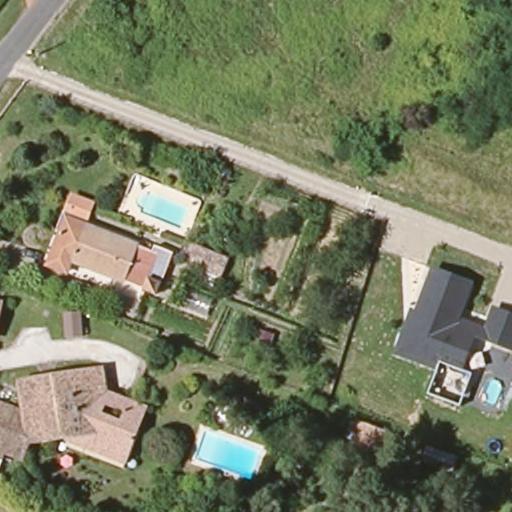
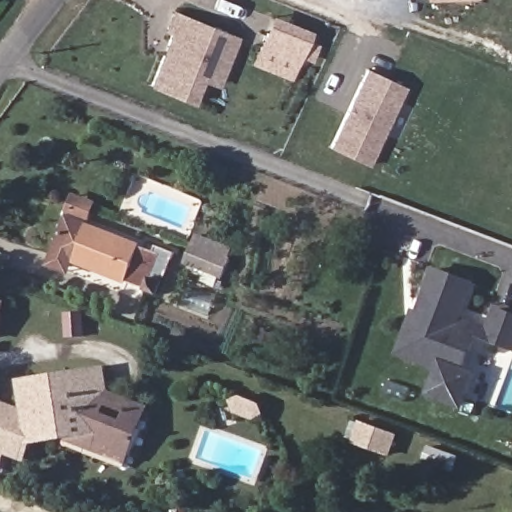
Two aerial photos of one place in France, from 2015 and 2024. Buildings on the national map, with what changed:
new [(175,33),(169,30),(176,13),(238,38),(219,85),(204,78),(194,102),(153,86),(175,33)]
new [(275,18),(312,33),(306,48),(299,64),(262,49),(268,33),(275,18)]
new [(370,70),(408,88),(370,167),(333,150),(370,70)]
unchanged [(52,269),(55,261),(55,259),(66,232),(61,230),(68,214),(72,215),(78,199),(100,207),(92,228),(143,247),(142,249),(159,256),(161,250),(179,258),(163,296),(151,292),(77,264),(76,269),(73,277),(52,269)]
unchanged [(191,244),(228,258),(221,275),(185,261),(191,244)]
unchanged [(493,308),(512,316),(512,351),(477,338),(464,374),(443,366),(441,373),(395,355),(411,309),(418,312),(432,270),(476,283),(463,320),(487,326),(493,308)]
unchanged [(5,299),(0,330),(0,298),(5,299)]
unchanged [(64,312),(81,311),(84,336),(66,337),(64,312)]
unchanged [(5,405),(30,415),(23,385),(46,381),(59,379),(108,372),(113,396),(139,406),(153,411),(145,433),(135,457),(131,467),(65,441),(36,444),(29,463),(12,456),(3,479),(0,478),(0,417),(5,405)]
unchanged [(228,400),(241,396),(258,403),(263,414),(251,418),(234,412),(228,400)]
unchanged [(400,437),(393,457),(359,446),(366,425),(400,437)]

